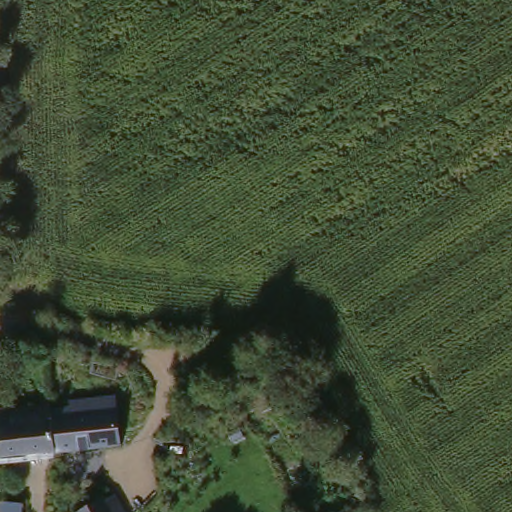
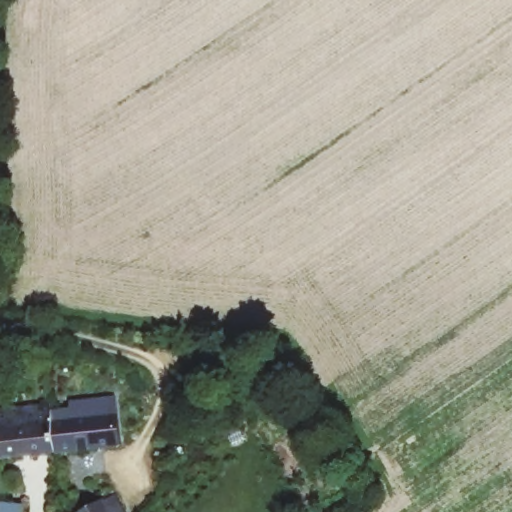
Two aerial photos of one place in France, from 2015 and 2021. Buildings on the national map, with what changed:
unchanged [(48,407),(48,412),(50,454),(0,455),(0,405),(48,405),(48,407)]
unchanged [(68,412),(67,406),(115,405),(117,452),(50,454),(48,412),(68,412)]
unchanged [(92,512),(114,503),(119,512),(92,512)]

